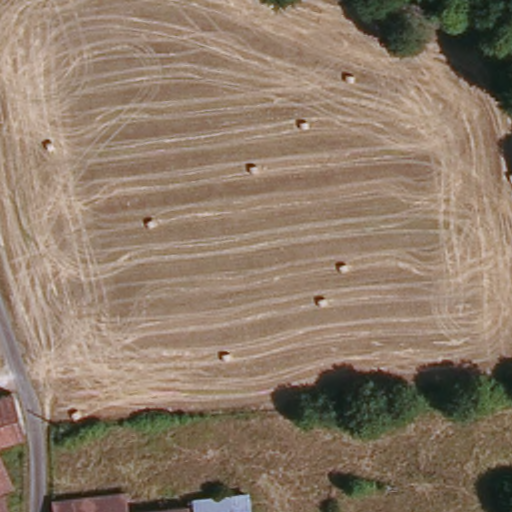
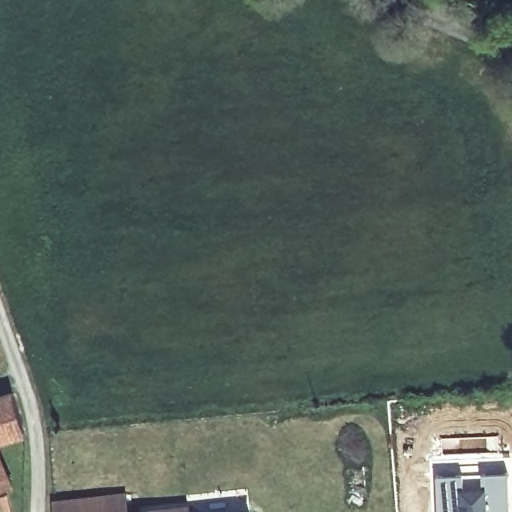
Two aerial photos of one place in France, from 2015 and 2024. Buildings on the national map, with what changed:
unchanged [(25,434),(0,443),(0,396),(11,392),(25,434)]
unchanged [(0,490),(0,443),(2,452),(14,487),(0,490)]
new [(441,455),(494,453),(494,457),(508,457),(509,472),(512,471),(512,512),(434,512),(430,459),(441,458),(441,455)]
unchanged [(121,496),(123,512),(62,512),(60,503),(121,496)]
demolished [(0,499),(11,498),(13,512),(0,512),(0,499)]
unchanged [(245,502),(246,508),(247,512),(185,512),(185,511),(196,509),(245,502)]
unchanged [(185,511),(185,512),(172,512),(185,511)]

